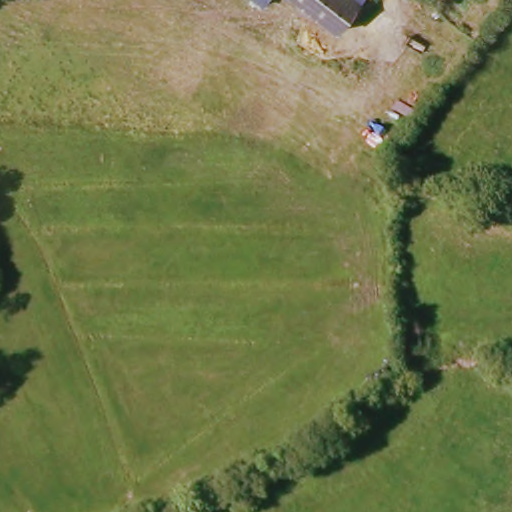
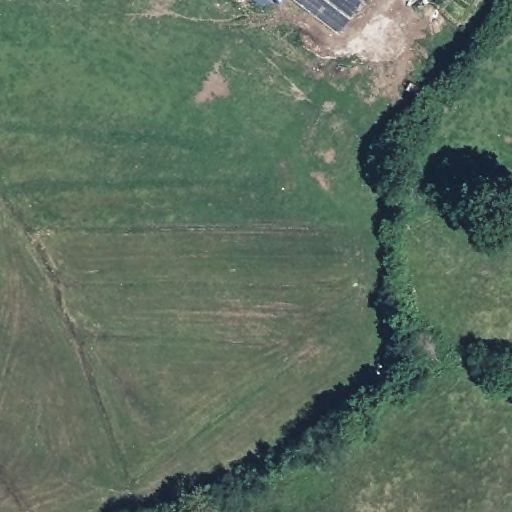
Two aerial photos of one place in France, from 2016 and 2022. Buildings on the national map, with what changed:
unchanged [(339,30),(301,0),(358,0),(360,1),(339,30)]

